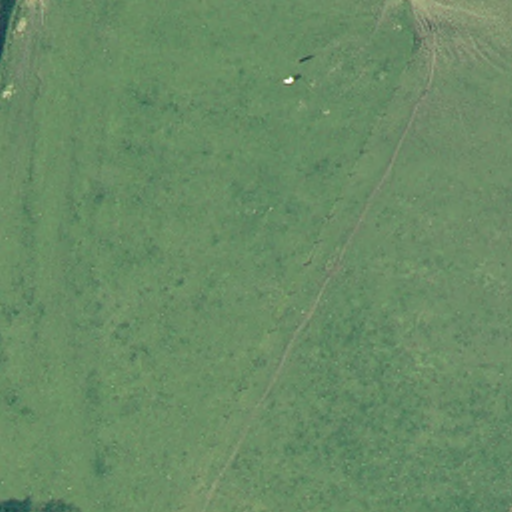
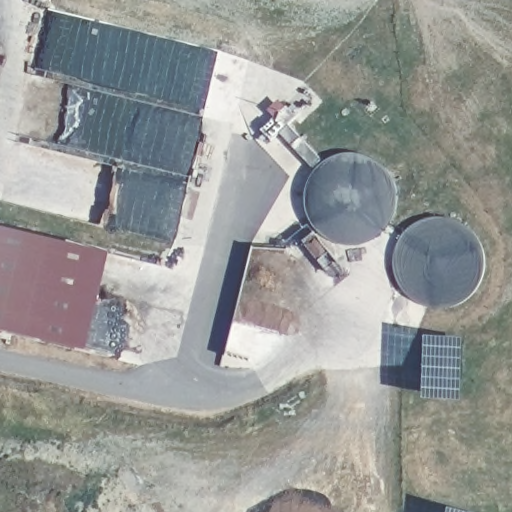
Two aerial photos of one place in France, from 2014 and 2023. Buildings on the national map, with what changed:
new [(117,254),(93,349),(0,326),(0,226),(117,254)]

